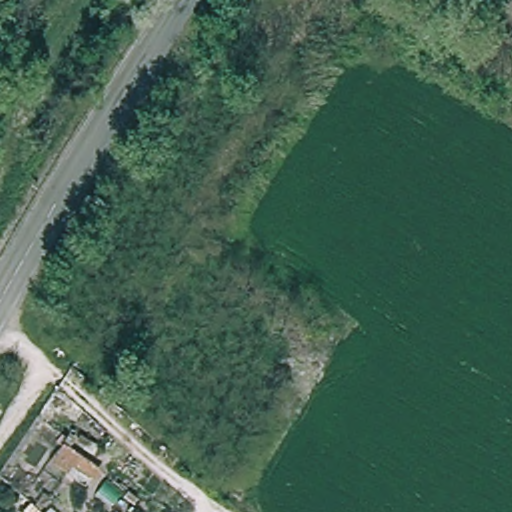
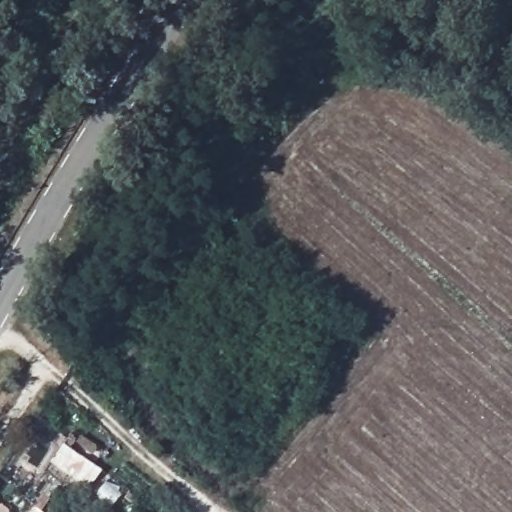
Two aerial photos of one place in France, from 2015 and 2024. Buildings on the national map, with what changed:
unchanged [(63,442),(100,469),(91,485),(71,470),(62,480),(48,463),(63,442)]

